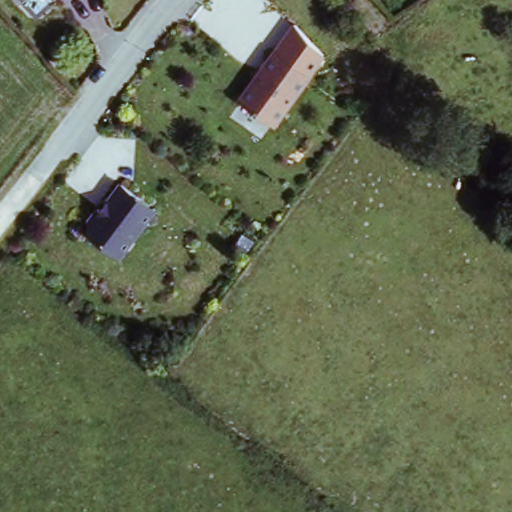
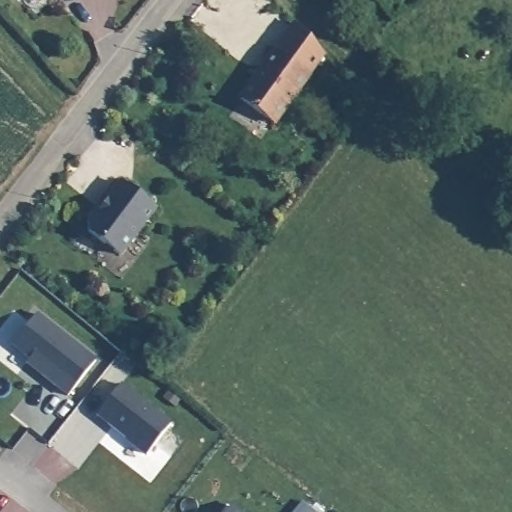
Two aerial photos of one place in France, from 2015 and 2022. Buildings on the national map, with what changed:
unchanged [(310,74),(275,120),(242,95),(277,49),(310,74)]
unchanged [(100,205),(120,178),(154,204),(119,250),(87,226),(86,216),(97,202),(100,205)]
new [(12,346),(35,316),(95,362),(67,397),(42,377),(25,364),(29,360),(12,346)]
new [(120,385),(170,425),(147,455),(97,416),(120,385)]
new [(237,512),(227,512),(231,507),(237,512)]

